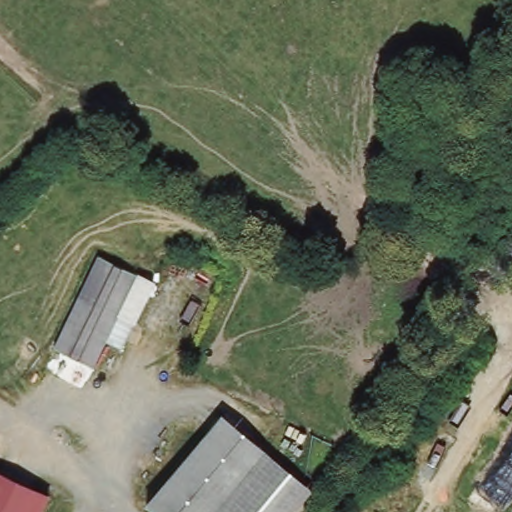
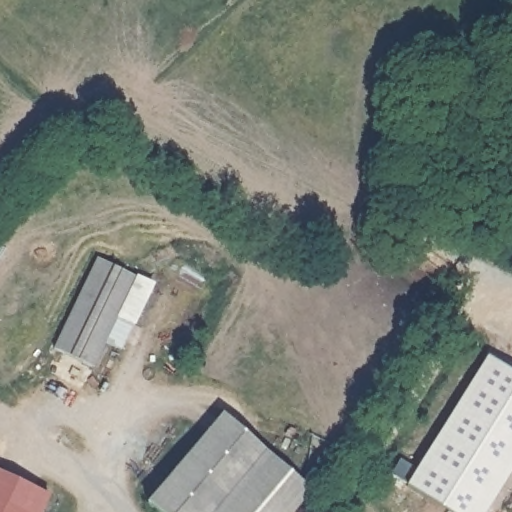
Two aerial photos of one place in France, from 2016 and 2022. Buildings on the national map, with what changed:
unchanged [(138,277),(126,303),(119,315),(134,324),(120,352),(102,344),(90,367),(54,347),(103,258),(138,277)]
demolished [(175,261),(209,275),(182,343),(148,328),(175,261)]
new [(486,356),(512,372),(512,470),(485,512),(449,512),(405,485),(486,356)]
unchanged [(311,489),(292,512),(156,512),(145,503),(221,413),(311,489)]
unchanged [(53,500),(47,512),(0,512),(0,472),(53,500)]

